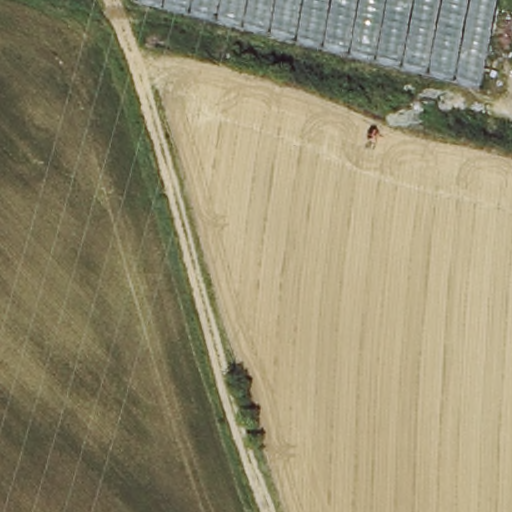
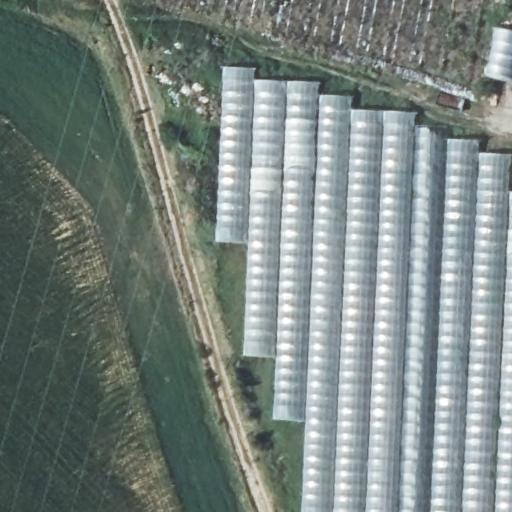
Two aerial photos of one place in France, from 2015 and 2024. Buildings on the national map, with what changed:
unchanged [(480,87),(143,6),(140,0),(498,0),(480,87)]
new [(272,422),(276,358),(243,356),(248,245),(218,244),(228,68),(257,70),(256,82),(319,84),(318,96),(351,98),(350,111),(414,114),(414,125),(447,127),(447,141),(479,142),(478,155),(510,157),(508,194),(512,194),(512,512),(303,512),(305,423),(272,422)]

